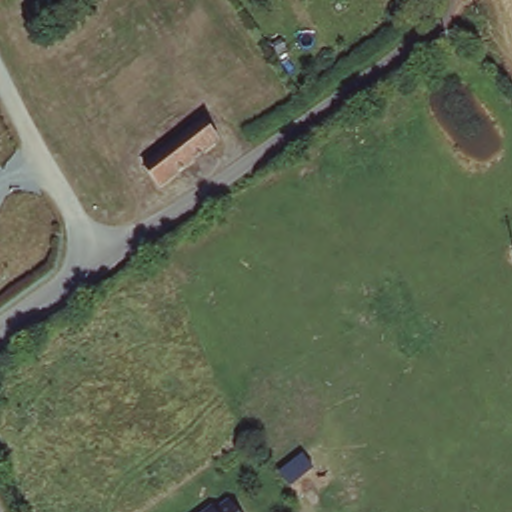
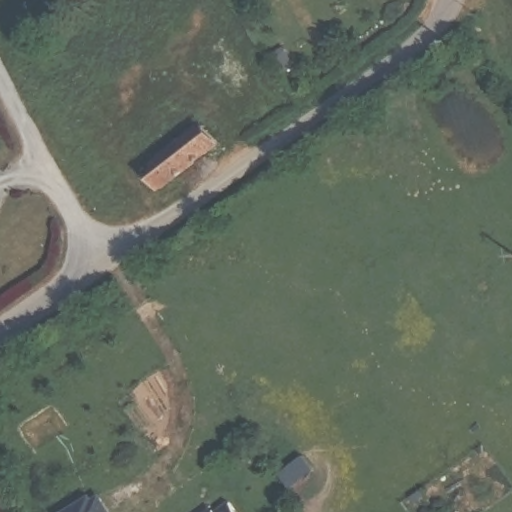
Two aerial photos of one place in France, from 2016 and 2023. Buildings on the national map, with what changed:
unchanged [(164,184),(149,163),(204,120),(220,140),(164,184)]
new [(94,501),(101,497),(109,512),(63,512),(91,496),(94,501)]
unchanged [(239,512),(208,512),(231,498),(239,512)]

